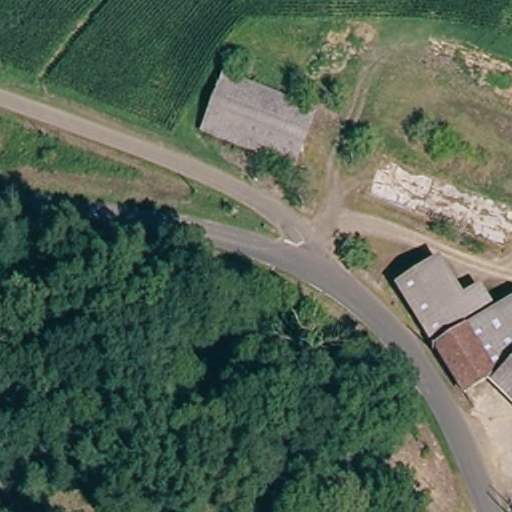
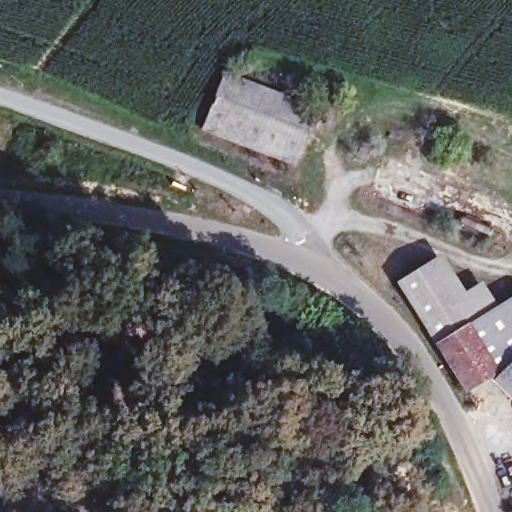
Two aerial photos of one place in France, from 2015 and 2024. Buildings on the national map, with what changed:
unchanged [(319,111),(294,165),(202,120),(227,67),(319,111)]
unchanged [(488,378),(464,389),(434,341),(392,283),(438,253),(457,287),(480,278),(497,302),(512,292),(512,398),(488,378)]

